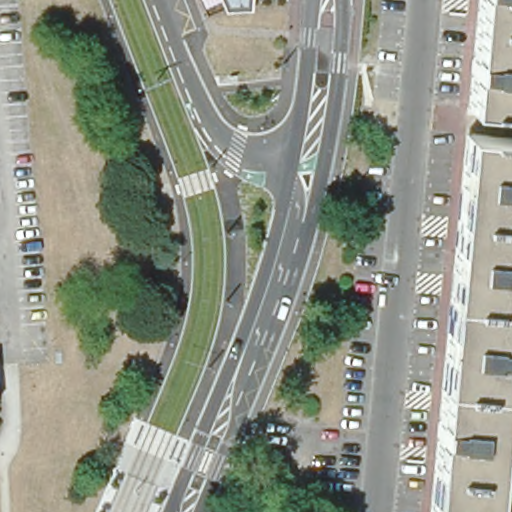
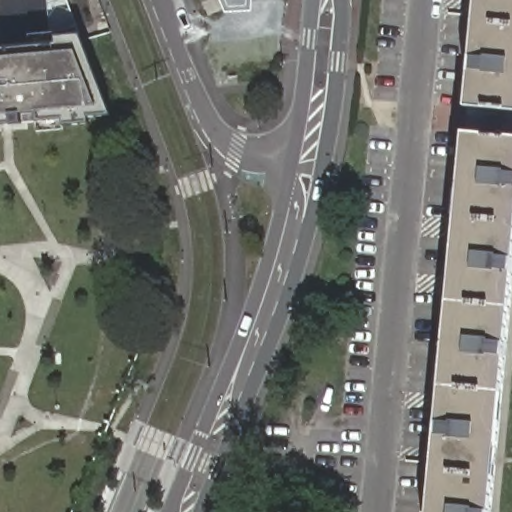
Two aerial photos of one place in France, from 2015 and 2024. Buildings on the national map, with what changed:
unchanged [(223,9),(220,0),(248,0),(247,10),(223,9)]
unchanged [(512,0),(512,99),(471,92),(480,0),(512,0)]
new [(39,124),(0,127),(0,48),(58,43),(57,37),(81,35),(111,116),(39,121),(39,124)]
unchanged [(470,114),(471,92),(512,99),(512,116),(470,114)]
unchanged [(468,139),(512,142),(512,343),(498,512),(436,512),(468,139)]

